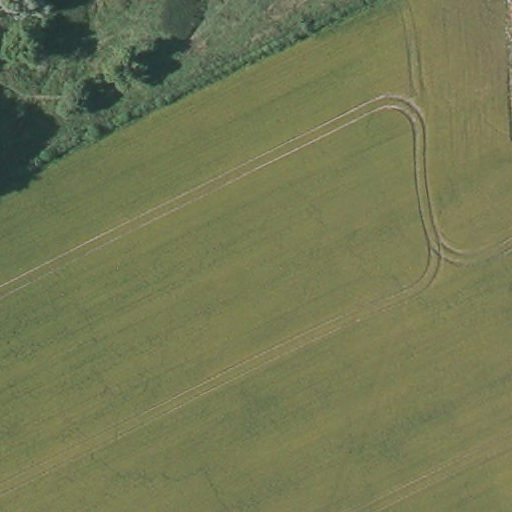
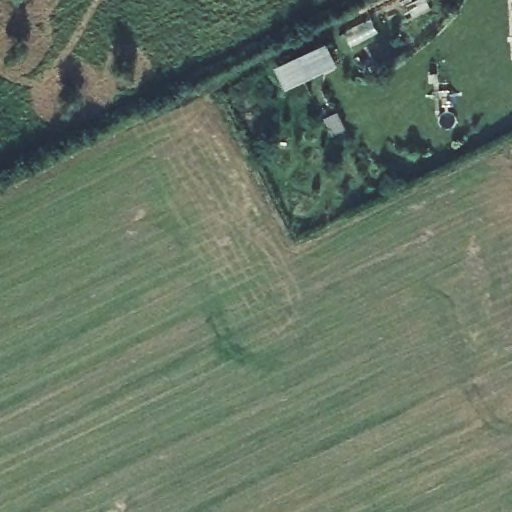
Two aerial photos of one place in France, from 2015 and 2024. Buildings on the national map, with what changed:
new [(327,45),(337,66),(287,89),(277,68),(327,45)]

